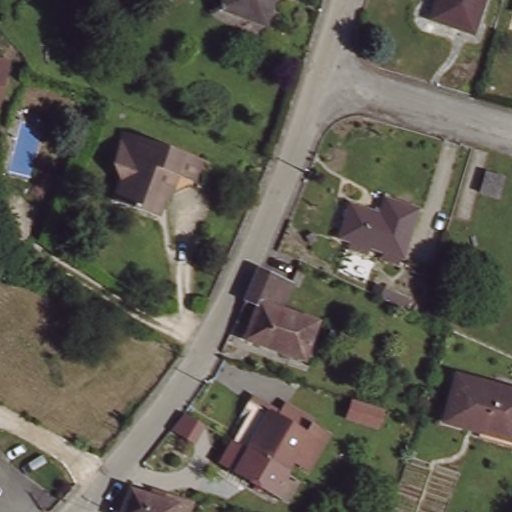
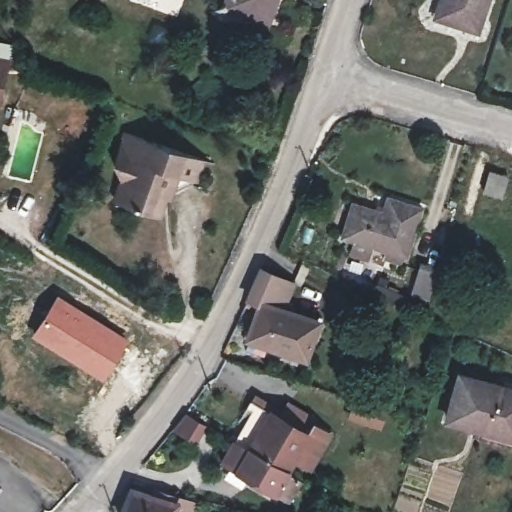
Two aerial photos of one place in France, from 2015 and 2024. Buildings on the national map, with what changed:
unchanged [(276,0),(270,16),(230,1),(231,0),(276,0)]
unchanged [(435,16),(441,0),(487,0),(477,30),(435,16)]
unchanged [(7,61),(4,76),(0,89),(0,60),(7,61)]
unchanged [(194,175),(192,179),(190,178),(169,191),(164,189),(157,210),(114,195),(122,174),(115,159),(130,151),(132,144),(122,141),(127,126),(137,130),(202,153),(194,175)]
unchanged [(502,197),(484,192),(489,171),(507,176),(502,197)]
unchanged [(362,242),(347,237),(357,205),(387,214),(392,199),(425,210),(410,257),(373,245),(370,254),(359,251),(362,242)]
unchanged [(419,267),(436,272),(427,299),(411,294),(419,267)]
unchanged [(250,339),(264,303),(252,299),(265,269),(298,283),(286,307),(322,321),(310,359),(250,339)]
new [(57,294),(130,340),(101,381),(30,336),(57,294)]
unchanged [(512,438),(447,420),(460,376),(512,391),(512,438)]
unchanged [(265,402),(300,423),(306,413),(325,424),(304,459),(288,450),(281,462),(250,443),(243,439),(229,431),(250,394),(265,402)]
new [(186,412),(207,425),(195,445),(172,431),(186,412)]
unchanged [(243,439),(250,443),(281,462),(280,463),(294,470),(282,490),(217,452),(229,431),(243,439)]
unchanged [(174,512),(121,512),(130,488),(152,495),(154,490),(165,493),(194,502),(190,512),(175,507),(174,512)]

